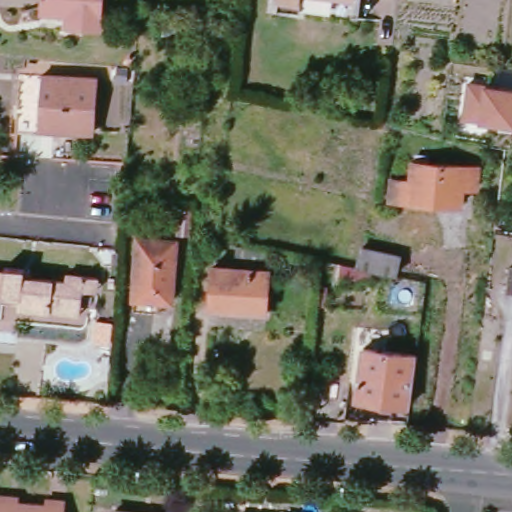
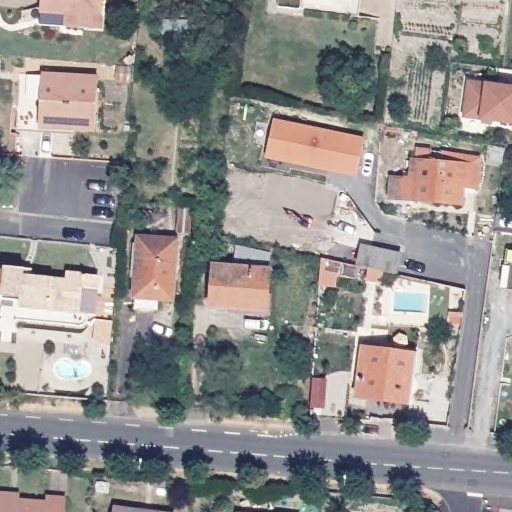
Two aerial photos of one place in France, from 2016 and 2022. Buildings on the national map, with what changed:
unchanged [(65,29),(66,10),(41,9),(42,0),(102,0),(100,31),(65,29)]
unchanged [(278,7),(279,0),(302,0),(300,9),(278,7)]
unchanged [(214,17),(215,8),(228,8),(228,6),(238,6),(237,14),(228,14),(228,17),(214,17)]
unchanged [(55,127),(55,122),(40,121),(42,74),(99,77),(96,130),(55,127)]
unchanged [(464,117),(469,82),(512,89),(512,124),(464,117)]
new [(272,122),(363,140),(357,172),(330,166),(329,171),(291,164),(292,161),(265,156),(272,122)]
unchanged [(478,193),(465,192),(464,208),(391,203),(392,181),(411,183),(413,164),(417,164),(417,157),(432,158),(431,166),(480,169),(478,193)]
unchanged [(135,296),(140,238),(177,241),(172,299),(135,296)]
unchanged [(357,266),(362,245),(402,253),(397,275),(357,266)]
unchanged [(212,306),(215,267),(269,270),(267,310),(212,306)]
unchanged [(5,296),(3,302),(0,302),(0,274),(5,274),(5,269),(16,271),(14,297),(5,296)]
unchanged [(21,308),(22,298),(14,297),(16,271),(24,271),(32,272),(30,280),(67,284),(67,276),(85,277),(98,279),(97,291),(85,290),(83,306),(82,315),(65,313),(21,308)]
unchanged [(510,287),(512,273),(512,288),(510,287)]
unchanged [(412,404),(357,395),(362,348),(418,355),(412,404)]
unchanged [(310,417),(314,380),(350,384),(346,419),(310,417)]
unchanged [(65,498),(65,503),(64,512),(0,512),(0,492),(19,494),(19,499),(47,501),(47,497),(65,498)]
unchanged [(165,512),(112,512),(112,506),(165,512)]

